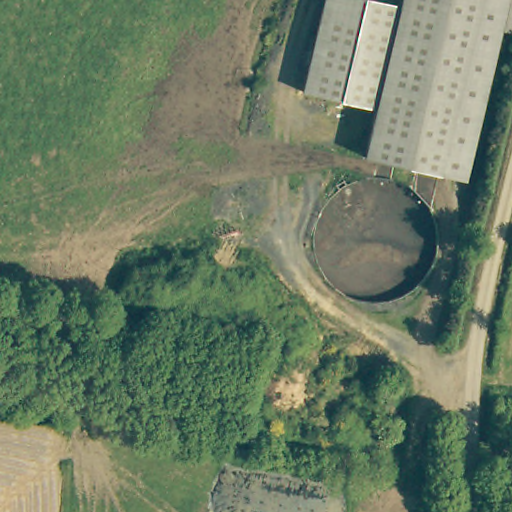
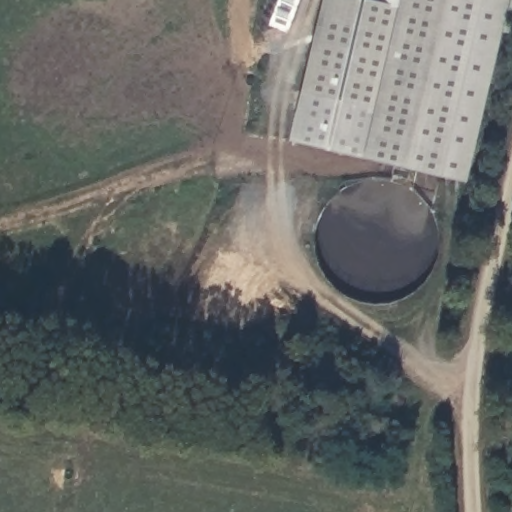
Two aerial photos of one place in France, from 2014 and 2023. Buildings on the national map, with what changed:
unchanged [(373,110),(301,92),(322,0),(373,0),(398,6),(400,0),(512,0),(512,35),(502,33),(467,182),(363,159),(373,110)]
new [(291,140),(301,92),(373,110),(363,159),(291,140)]

